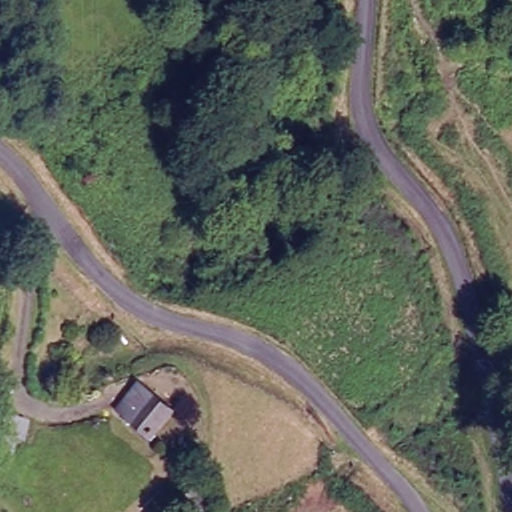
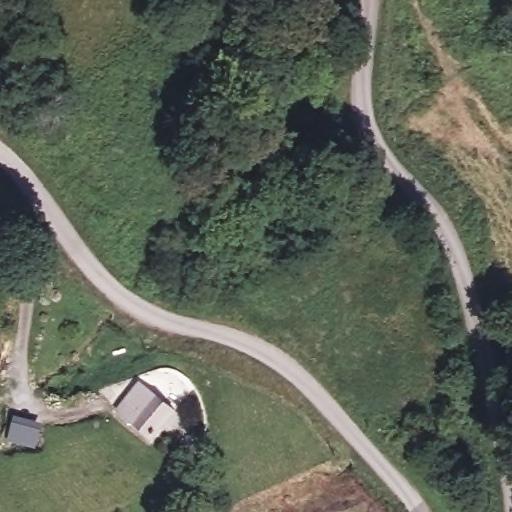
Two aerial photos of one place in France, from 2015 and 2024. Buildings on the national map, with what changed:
unchanged [(146,439),(126,418),(116,408),(131,393),(145,385),(154,395),(173,417),(146,439)]

